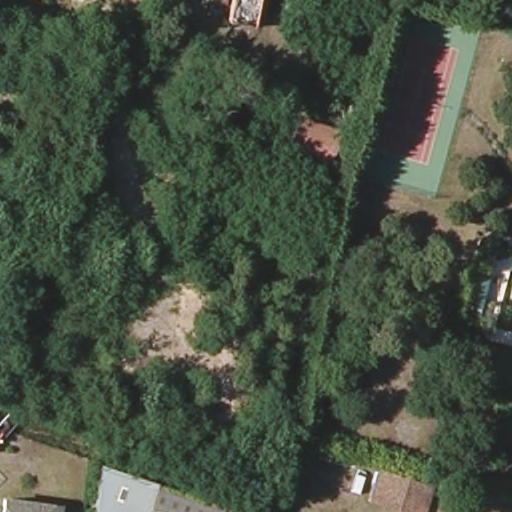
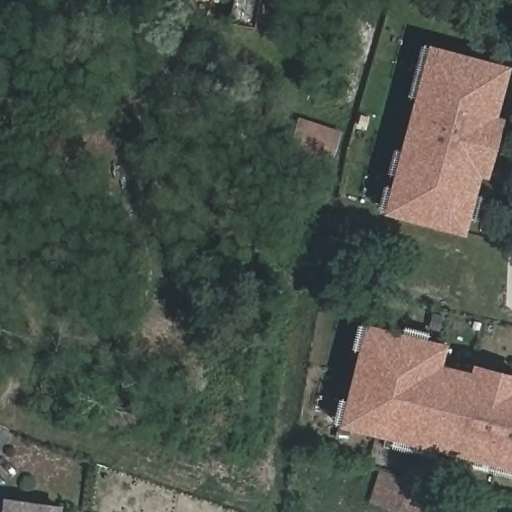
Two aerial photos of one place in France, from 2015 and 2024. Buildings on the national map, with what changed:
new [(386,210),(430,47),(506,67),(484,150),(462,230),(386,210)]
unchanged [(333,163),(289,152),(300,115),(343,129),(333,163)]
new [(484,150),(487,139),(494,141),(491,151),(484,150)]
new [(468,365),(512,377),(512,458),(353,417),(377,320),(453,339),(449,360),(468,365)]
unchanged [(428,504),(378,489),(387,460),(437,475),(428,504)]
demolished [(235,512),(99,512),(105,468),(235,512)]
unchanged [(64,508),(63,512),(8,512),(10,501),(64,508)]

